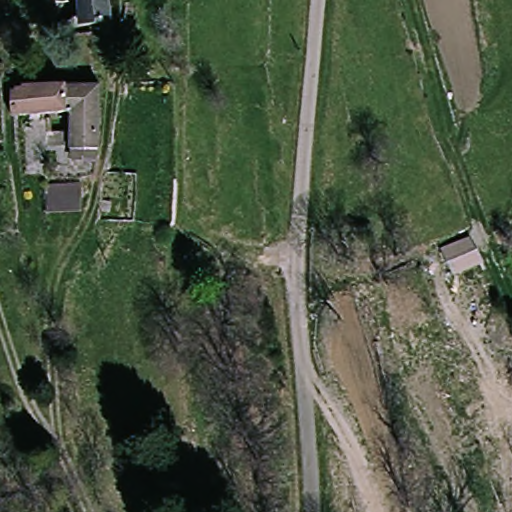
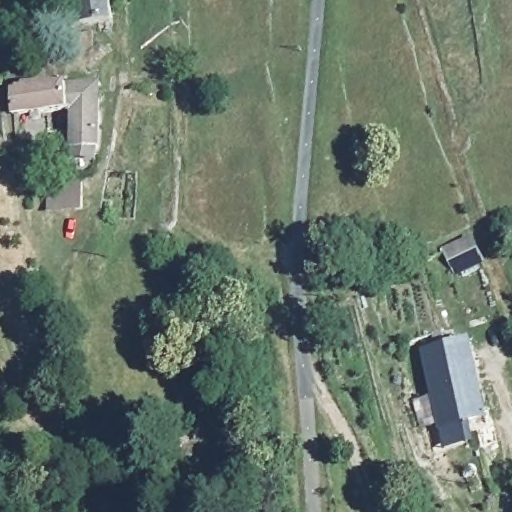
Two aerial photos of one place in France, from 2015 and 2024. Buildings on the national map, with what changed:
unchanged [(82,24),(80,0),(115,0),(119,21),(82,24)]
unchanged [(75,161),(75,114),(10,115),(11,85),(70,82),(104,84),(106,162),(75,161)]
unchanged [(88,214),(49,214),(49,184),(88,185),(88,214)]
demolished [(508,293),(512,301),(512,317),(497,320),(488,297),(508,293)]
new [(489,418),(438,430),(418,349),(469,338),(489,418)]

